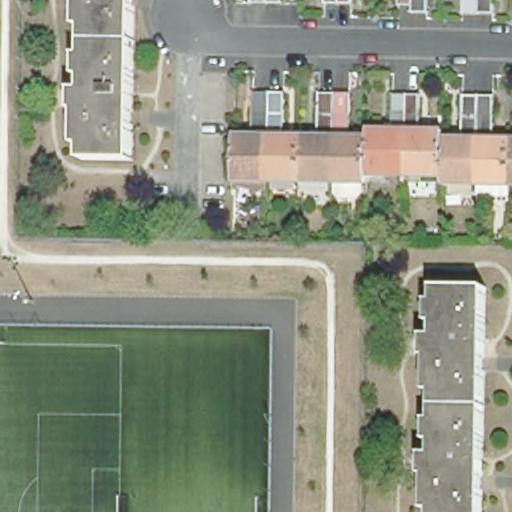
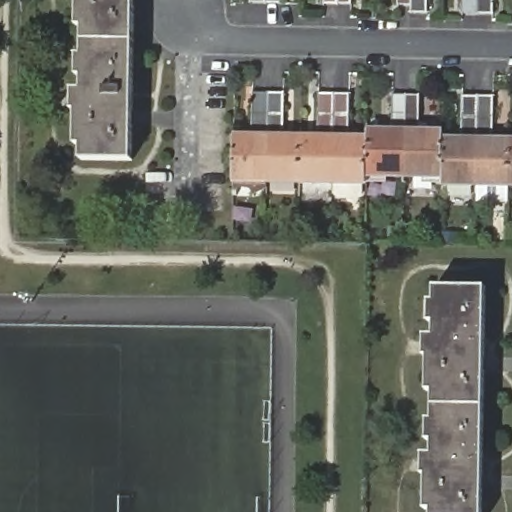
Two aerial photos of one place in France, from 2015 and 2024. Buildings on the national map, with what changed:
unchanged [(79,25),(79,0),(135,0),(134,160),(83,159),(84,146),(79,145),(79,111),(74,111),(74,89),(84,89),(84,75),(79,75),(79,55),(84,55),(84,25),(79,25)]
unchanged [(334,177),(301,177),(268,176),(234,176),(235,130),(252,131),(252,87),(283,87),(283,131),(299,131),(317,132),(317,88),(349,89),(348,132),(370,133),(370,122),(391,123),(391,90),(423,90),(423,124),(442,124),(442,134),(460,135),(460,90),(492,91),(492,135),(512,135),(512,181),(508,180),(475,180),(443,180),(443,170),(406,170),(368,169),(368,179),(334,177)]
unchanged [(437,390),(433,391),(433,356),(424,356),(425,335),(438,333),(438,320),(434,320),(434,300),(439,300),(439,286),(485,287),(483,512),(434,512),(434,510),(430,509),(431,476),(423,476),(423,453),(435,454),(436,441),(432,441),(432,420),(436,420),(437,390)]

